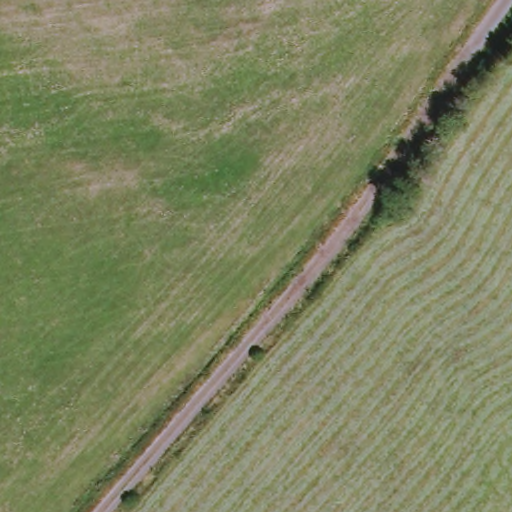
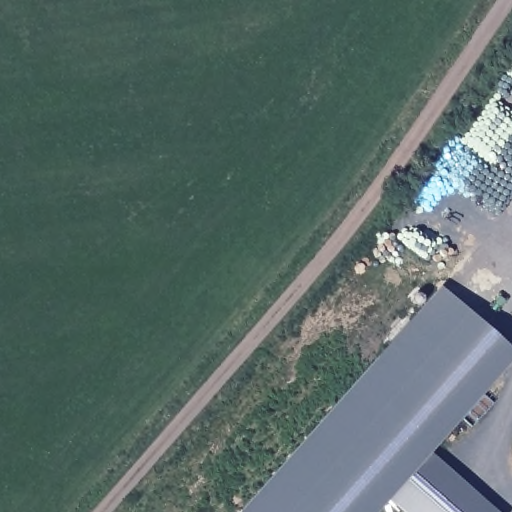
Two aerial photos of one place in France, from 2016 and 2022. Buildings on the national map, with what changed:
new [(420,309),(418,305),(416,303),(415,301),(414,299),(414,296),(416,295),(418,294),(424,297),(427,302),(440,286),(512,350),(512,362),(431,453),(498,512),(403,512),(388,499),(377,512),(242,512),(240,510),(247,502),(420,309)]

